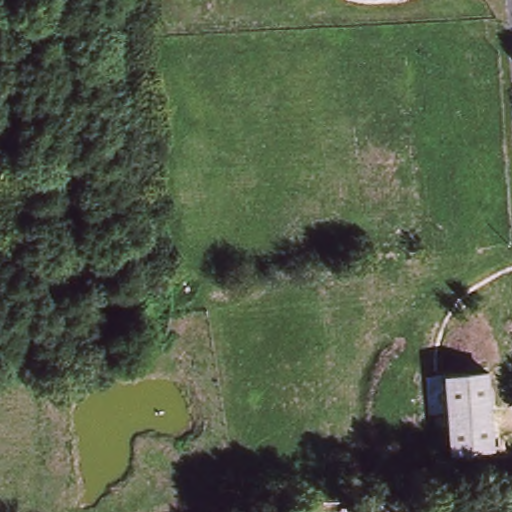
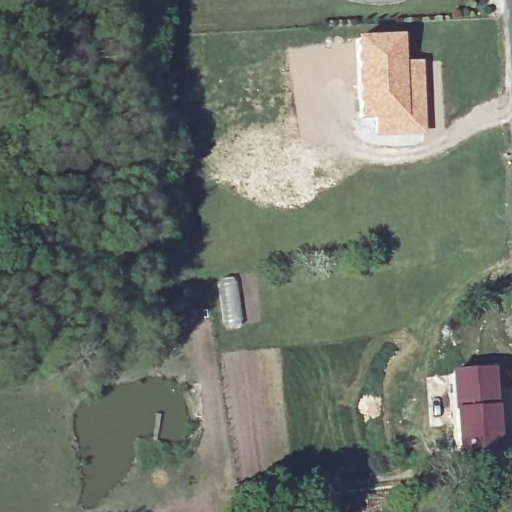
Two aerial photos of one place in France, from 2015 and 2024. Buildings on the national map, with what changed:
new [(401,35),(402,67),(425,65),(429,131),(384,134),(382,119),(357,121),(353,38),(401,35)]
unchanged [(449,379),(489,376),(494,450),(454,452),(449,379)]

